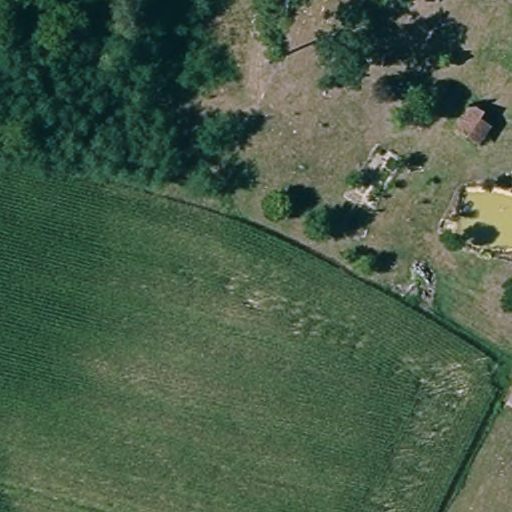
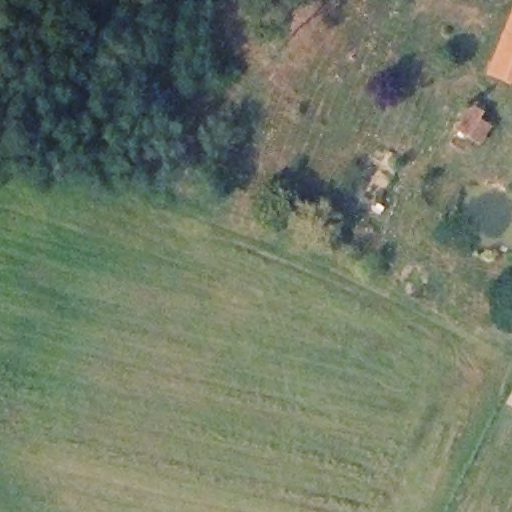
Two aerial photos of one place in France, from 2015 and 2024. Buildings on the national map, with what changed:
new [(486,76),(512,11),(512,86),(486,76)]
unchanged [(471,143),(480,123),(500,134),(490,153),(471,143)]

